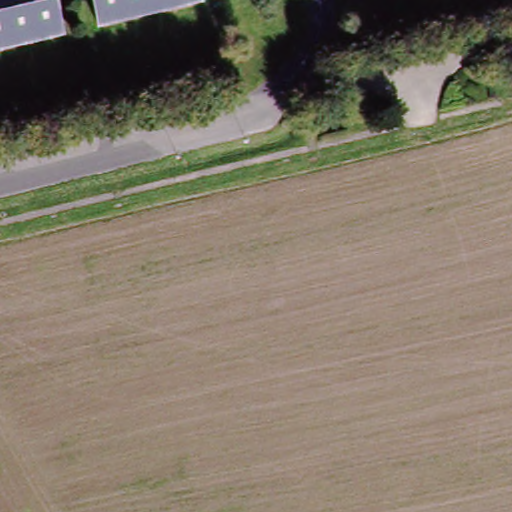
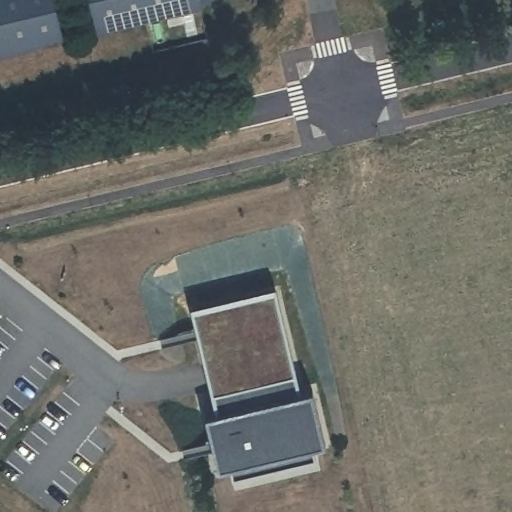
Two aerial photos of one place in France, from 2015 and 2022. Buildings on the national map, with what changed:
unchanged [(57,43),(0,57),(0,0),(47,0),(57,43)]
unchanged [(96,35),(88,0),(214,0),(194,5),(195,10),(96,35)]
new [(206,410),(217,408),(192,304),(277,283),(302,387),(314,384),(327,438),(232,461),(220,464),(206,410)]
new [(317,450),(234,471),(232,461),(315,441),(317,450)]

